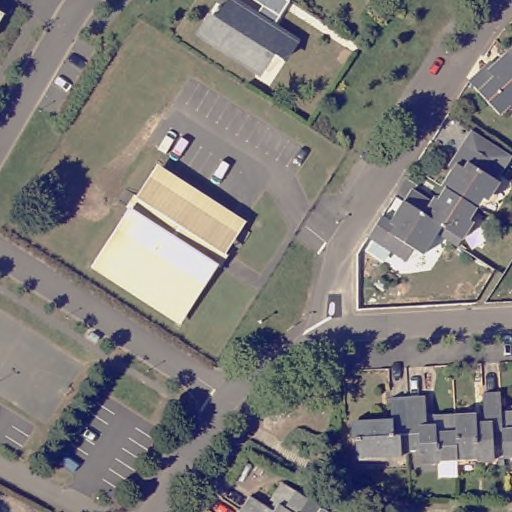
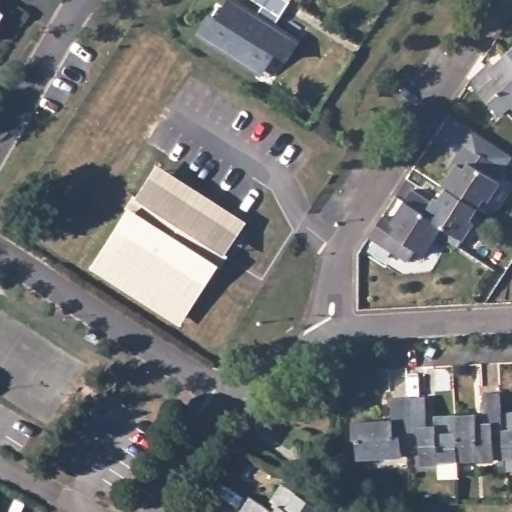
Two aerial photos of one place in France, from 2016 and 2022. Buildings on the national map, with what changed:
unchanged [(269,23),(292,37),(280,55),(269,48),(256,68),(197,30),(209,11),(216,15),(226,0),(233,0),(252,12),(259,2),(256,0),(285,0),(269,23)]
unchanged [(512,49),(512,58),(507,53),(512,49)]
unchanged [(490,105),(468,83),(469,81),(484,67),(489,71),(507,53),(512,58),(512,108),(500,96),(490,105)]
unchanged [(490,207),(485,204),(478,214),(445,194),(443,192),(457,170),(453,168),(466,148),(473,136),(512,160),(512,166),(506,175),(499,186),(502,189),(490,207)]
unchanged [(98,258),(109,238),(119,244),(126,236),(121,233),(139,204),(147,207),(153,197),(148,193),(162,169),(230,213),(238,218),(212,259),(180,310),(98,258)]
unchanged [(471,225),(475,228),(461,252),(438,238),(442,231),(405,208),(413,195),(435,209),(445,194),(478,214),(471,225)]
unchanged [(424,260),(415,255),(408,267),(369,242),(382,221),(392,227),(405,208),(442,231),(438,238),(424,260)]
unchanged [(495,446),(495,461),(479,461),(478,459),(458,460),(456,416),(477,415),(477,423),(485,423),(484,394),(501,393),(502,414),(503,446),(495,446)]
unchanged [(437,460),(437,464),(421,464),(420,450),(411,450),(408,398),(426,397),(427,425),(435,425),(434,417),(456,416),(458,460),(437,460)]
unchanged [(402,451),(402,457),(358,458),(356,421),(393,420),(391,398),(408,398),(411,450),(402,451)]
unchanged [(503,446),(502,414),(512,414),(512,458),(503,458),(503,446)]
unchanged [(251,497),(274,511),(277,505),(271,501),(282,482),(320,506),(329,512),(245,512),(242,510),(251,497)]
unchanged [(245,512),(242,512),(242,510),(245,512)]

